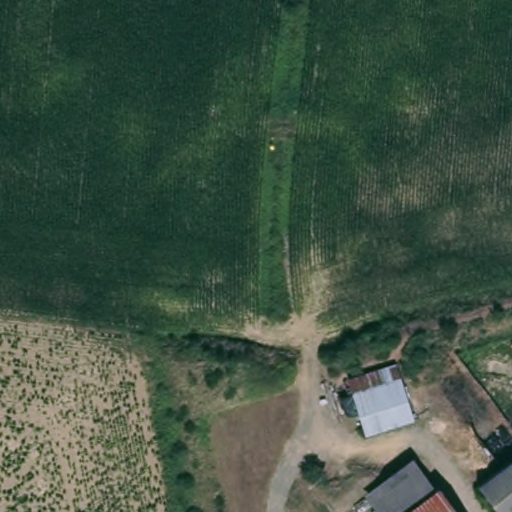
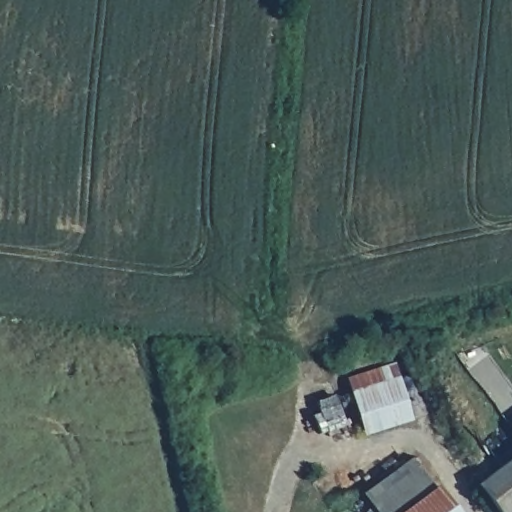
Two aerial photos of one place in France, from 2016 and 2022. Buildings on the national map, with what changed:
unchanged [(400,372),(410,418),(362,431),(350,384),(400,372)]
unchanged [(501,430),(502,430),(512,421),(512,443),(501,430)]
unchanged [(490,512),(473,492),(512,458),(512,512),(490,512)]
unchanged [(415,471),(430,492),(406,512),(370,512),(369,510),(415,471)]
unchanged [(435,488),(455,512),(406,512),(430,492),(435,488)]

